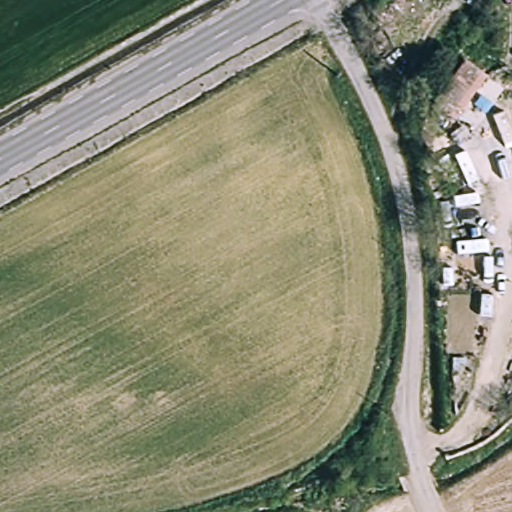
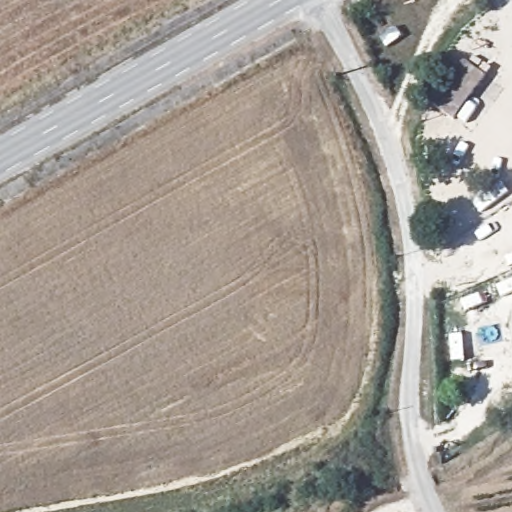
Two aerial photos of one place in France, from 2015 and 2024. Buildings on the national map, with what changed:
unchanged [(429,106),(461,63),(483,82),(447,123),(429,106)]

